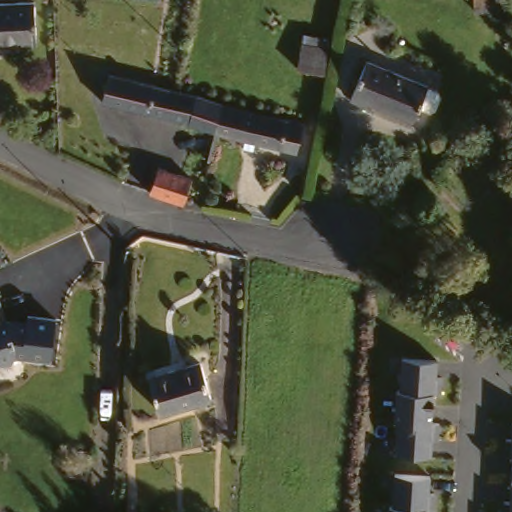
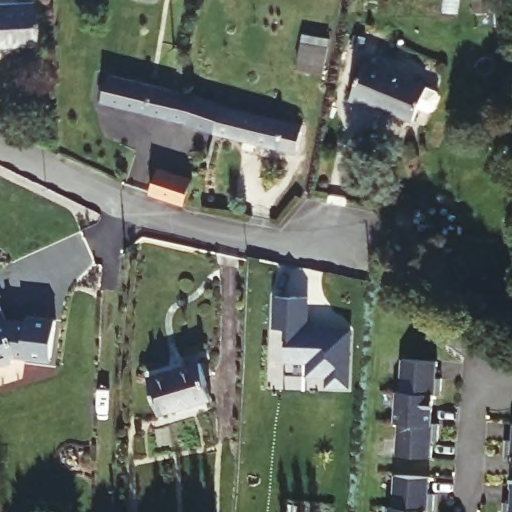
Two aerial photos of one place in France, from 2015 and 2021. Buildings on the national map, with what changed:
unchanged [(474,0),(496,0),(497,11),(488,12),(475,13),(474,0)]
unchanged [(35,2),(37,43),(0,45),(0,4),(35,2)]
unchanged [(297,70),(302,44),(303,34),(329,38),(327,48),(323,74),(297,70)]
unchanged [(427,88),(437,92),(440,97),(435,109),(434,110),(430,111),(420,107),(413,121),(368,102),(367,107),(350,99),(367,61),(427,88)]
unchanged [(186,94),(197,96),(222,105),(215,134),(187,125),(188,124),(102,102),(109,75),(180,92),(186,94)]
unchanged [(247,113),(288,122),(303,125),(297,154),(239,141),(215,134),(222,105),(247,113)]
unchanged [(158,169),(191,181),(182,206),(149,195),(158,169)]
new [(327,376),(307,375),(307,364),(285,362),(285,327),(273,327),(275,295),(310,297),(309,326),(352,328),(350,388),(327,387),(327,376)]
unchanged [(28,323),(29,316),(57,319),(53,359),(20,355),(15,361),(5,364),(0,363),(0,303),(7,321),(28,323)]
unchanged [(399,452),(400,420),(397,419),(398,388),(402,388),(404,356),(440,358),(438,375),(443,375),(443,392),(435,391),(434,420),(441,421),(440,437),(435,437),(435,454),(399,452)]
unchanged [(150,378),(200,363),(211,400),(160,414),(150,378)]
unchanged [(508,504),(510,458),(503,457),(504,441),(509,441),(510,424),(512,425),(512,512),(502,512),(503,503),(508,504)]
unchanged [(396,504),(398,472),(433,474),(432,491),(437,491),(437,507),(430,507),(429,512),(393,512),(393,504),(396,504)]

